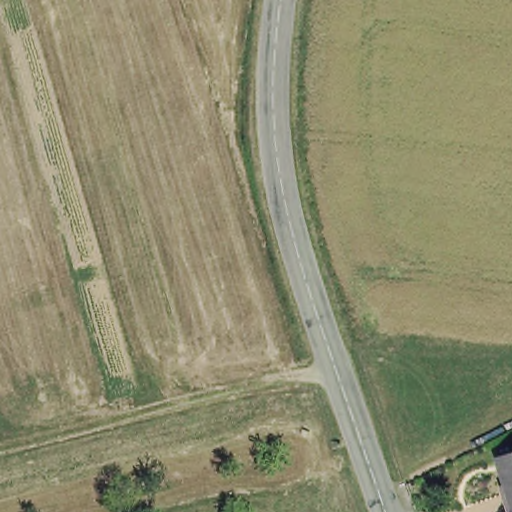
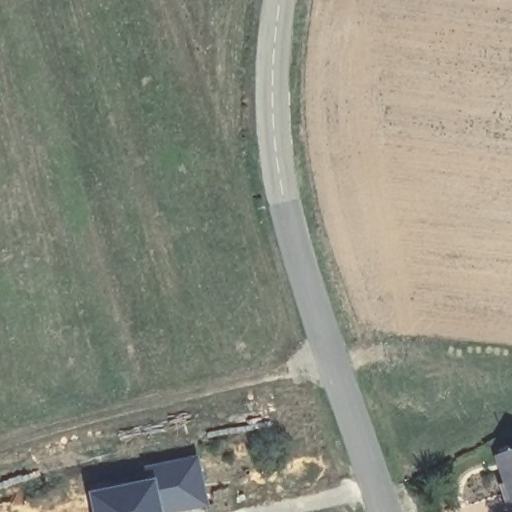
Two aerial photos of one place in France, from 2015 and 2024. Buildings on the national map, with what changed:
unchanged [(502,487),(505,485),(496,455),(512,450),(512,510),(509,511),(502,487)]
new [(161,508),(161,512),(101,512),(98,500),(154,488),(152,472),(200,464),(207,501),(161,508)]

